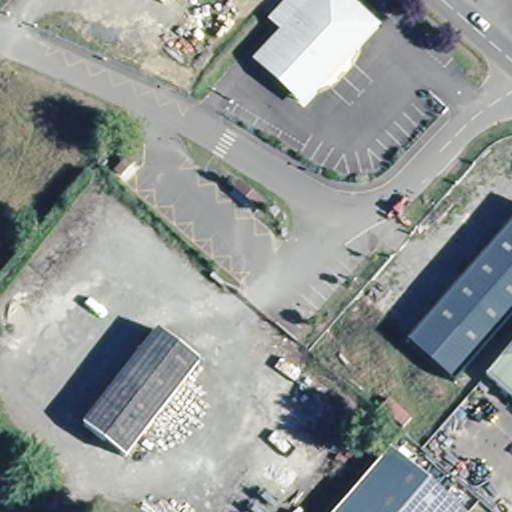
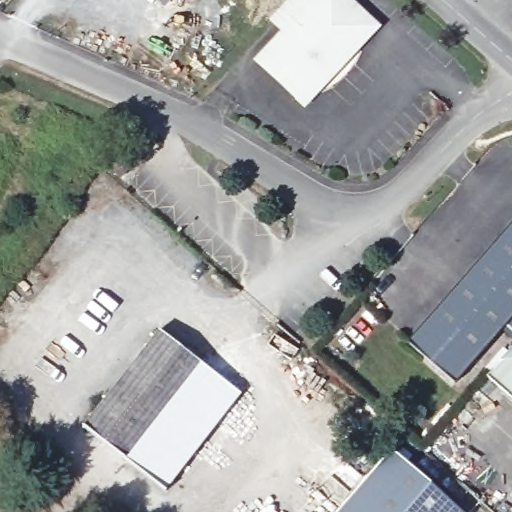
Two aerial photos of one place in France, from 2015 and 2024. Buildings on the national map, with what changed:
unchanged [(159,0),(169,0),(165,5),(159,0)]
unchanged [(290,35),(275,20),(294,0),(310,0),(317,6),(323,0),(350,0),(372,20),(380,27),(359,49),(327,84),(310,103),(303,97),(265,61),(290,35)]
unchanged [(453,382),(408,342),(512,221),(512,314),(453,382)]
unchanged [(125,459),(84,426),(159,329),(201,362),(125,459)]
unchanged [(486,375),(503,357),(512,346),(512,398),(486,375)]
new [(201,362),(242,394),(166,492),(125,459),(201,362)]
unchanged [(391,449),(463,512),(336,512),(391,449)]

